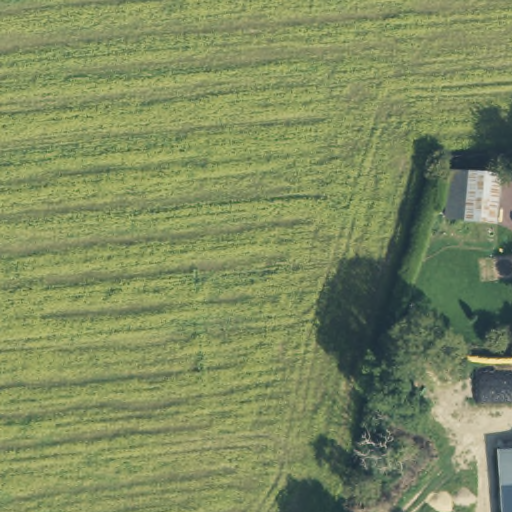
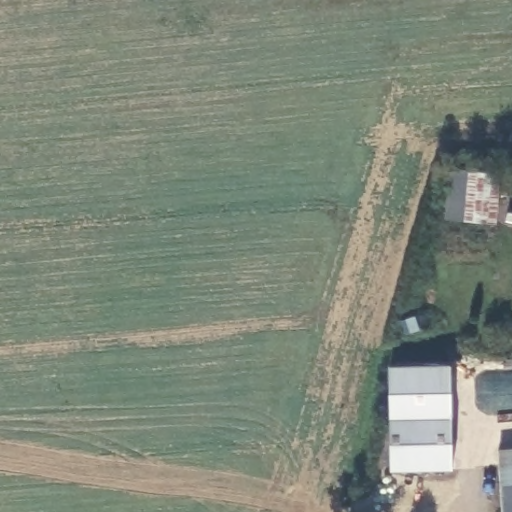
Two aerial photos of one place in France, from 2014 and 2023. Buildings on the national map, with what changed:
unchanged [(452,171),(500,175),(496,222),(448,218),(452,171)]
new [(453,470),(391,472),(388,366),(450,366),(453,470)]
unchanged [(507,509),(506,491),(504,445),(512,444),(512,508),(507,509)]
new [(503,512),(503,509),(507,509),(512,508),(512,512),(503,512)]

